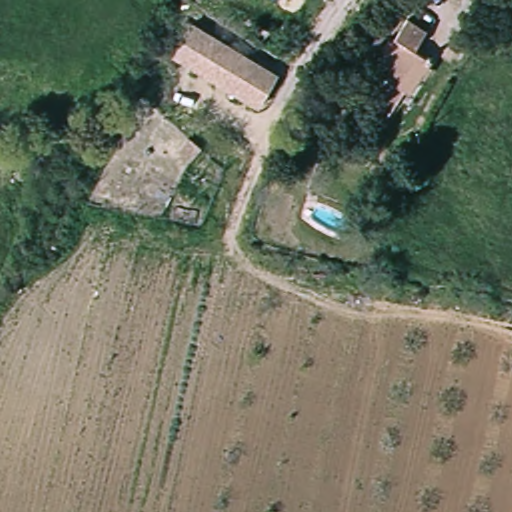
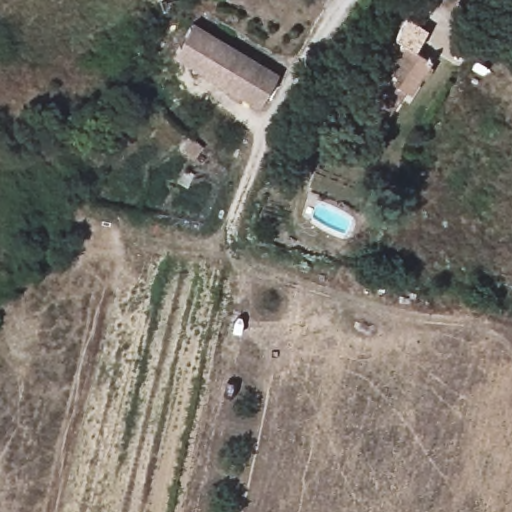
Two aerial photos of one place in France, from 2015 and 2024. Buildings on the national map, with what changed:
unchanged [(256,108),(173,53),(191,24),(276,78),(256,108)]
unchanged [(421,76),(415,72),(404,86),(386,70),(390,65),(379,55),(387,45),(397,53),(408,40),(432,61),(421,76)]

